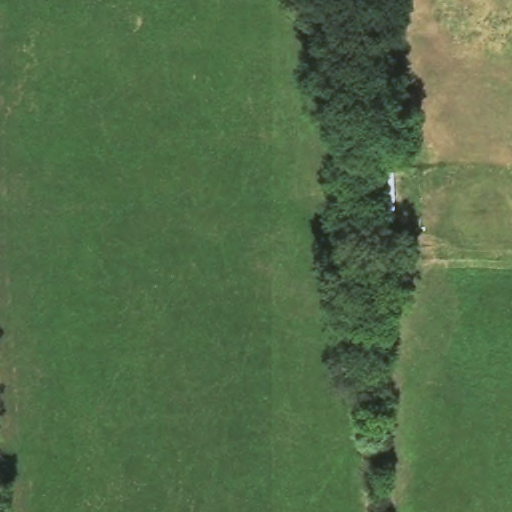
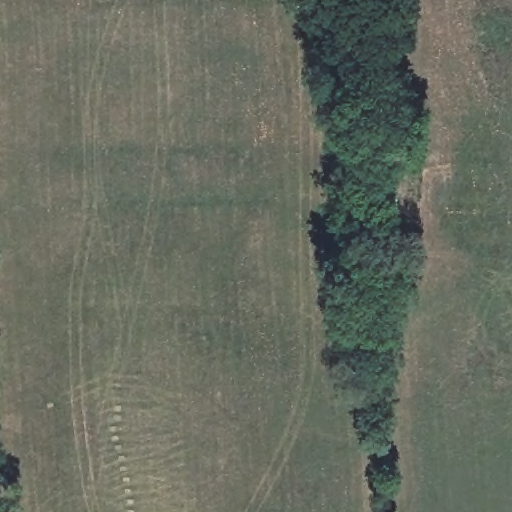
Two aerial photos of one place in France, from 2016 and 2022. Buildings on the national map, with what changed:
unchanged [(397,163),(397,196),(399,218),(372,219),(372,167),(397,163)]

